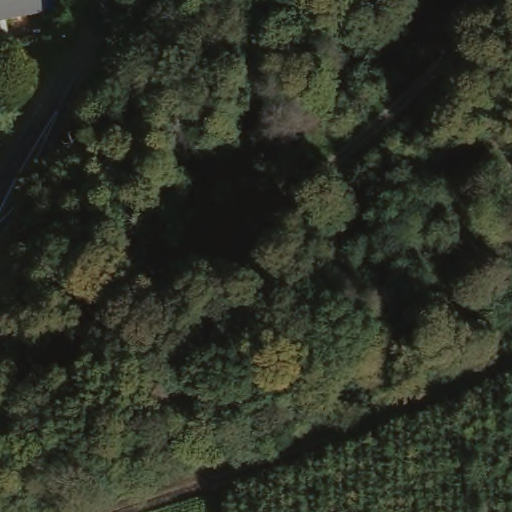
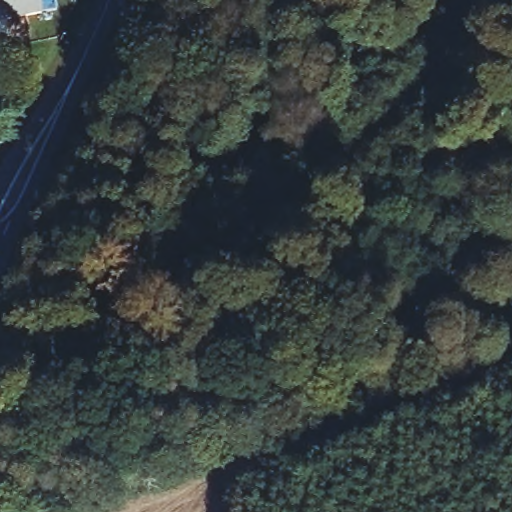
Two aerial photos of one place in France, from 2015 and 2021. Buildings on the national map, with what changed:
unchanged [(0,0),(48,0),(49,9),(35,11),(1,16),(4,33),(0,34),(0,0)]

